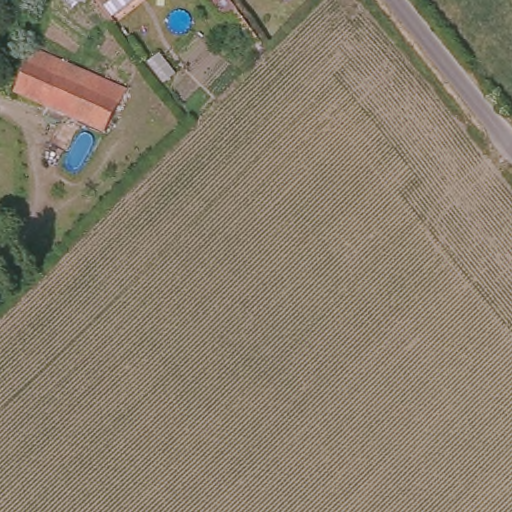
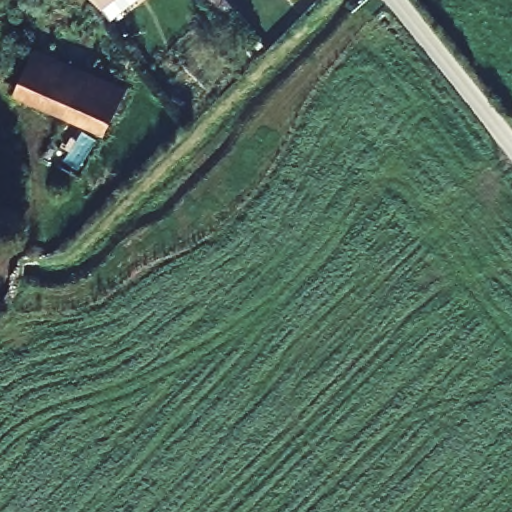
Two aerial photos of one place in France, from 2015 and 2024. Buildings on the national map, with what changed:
unchanged [(98,0),(131,0),(129,8),(113,21),(103,7),(98,0)]
unchanged [(219,20),(203,0),(230,0),(236,6),(219,20)]
unchanged [(34,49),(65,61),(60,74),(86,85),(91,73),(127,89),(106,131),(14,92),(34,49)]

